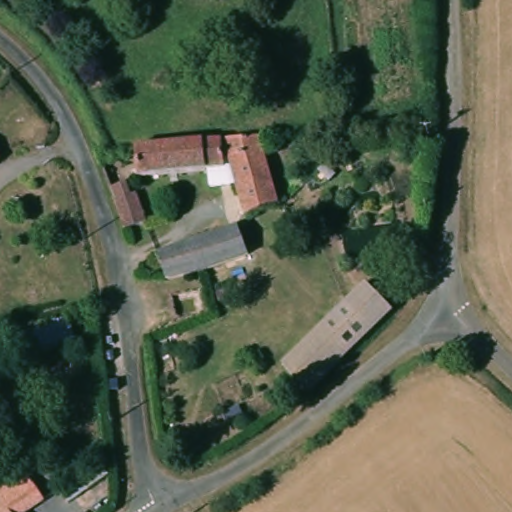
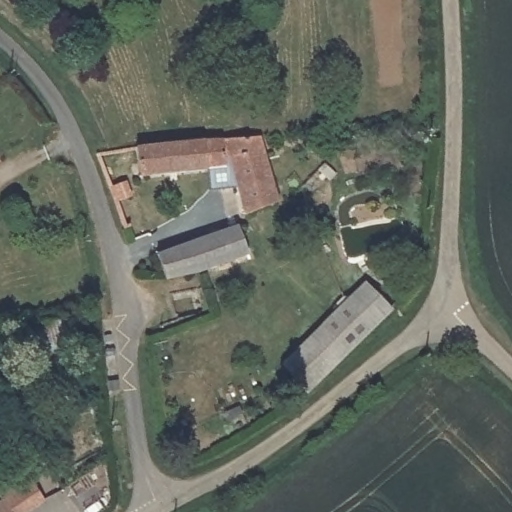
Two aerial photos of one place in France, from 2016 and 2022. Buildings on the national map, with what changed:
unchanged [(146,164),(111,169),(110,166),(108,159),(105,152),(228,140),(230,140),(250,138),(266,137),(268,142),(270,150),(270,151),(272,156),(283,191),(285,199),(286,202),(258,214),(251,212),(243,184),(218,187),(217,171),(148,176),(146,164)]
unchanged [(0,162),(0,158),(2,161),(0,162)]
unchanged [(133,228),(131,222),(128,214),(126,211),(125,206),(120,192),(119,190),(118,186),(134,180),(140,178),(145,192),(155,221),(133,228)]
unchanged [(165,277),(156,254),(205,237),(235,226),(246,254),(203,273),(165,277)]
unchanged [(344,300),(364,282),(391,310),(373,329),(344,300)]
unchanged [(373,329),(367,335),(358,344),(356,345),(350,352),(345,356),(319,325),(344,300),(373,329)]
unchanged [(69,319),(73,342),(37,351),(35,328),(69,319)]
unchanged [(281,362),(319,325),(345,356),(337,363),(321,380),(320,381),(314,386),(306,393),(281,362)]
unchanged [(0,501),(0,491),(25,475),(44,503),(31,512),(0,512),(0,503),(1,502),(0,501)]

